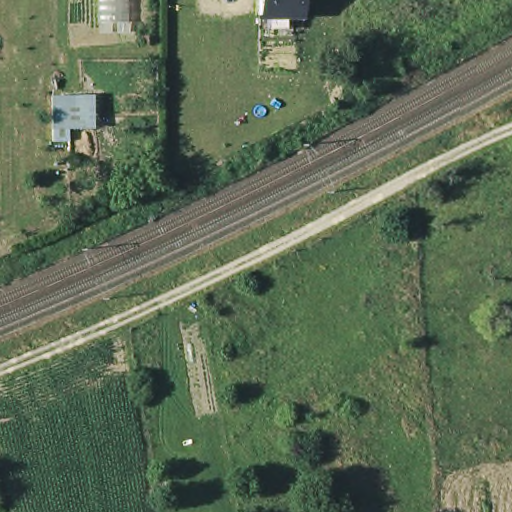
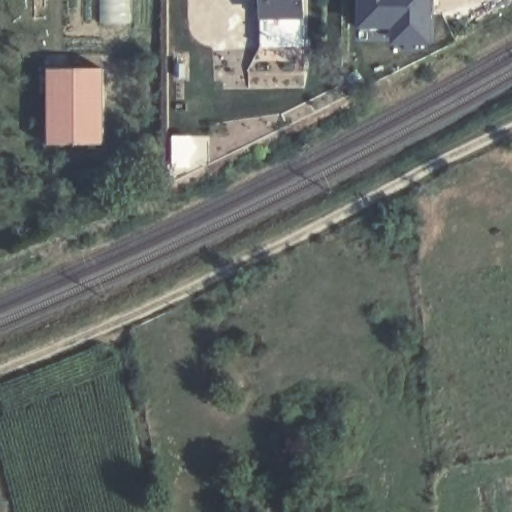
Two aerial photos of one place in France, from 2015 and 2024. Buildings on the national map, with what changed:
unchanged [(265,22),(263,22),(263,0),(307,0),(307,22),(265,22)]
new [(390,47),(388,30),(353,30),(354,0),(433,0),(433,45),(390,47)]
new [(106,147),(47,147),(47,65),(107,66),(106,147)]
demolished [(95,94),(97,130),(74,131),(74,141),(55,142),(55,95),(95,94)]

